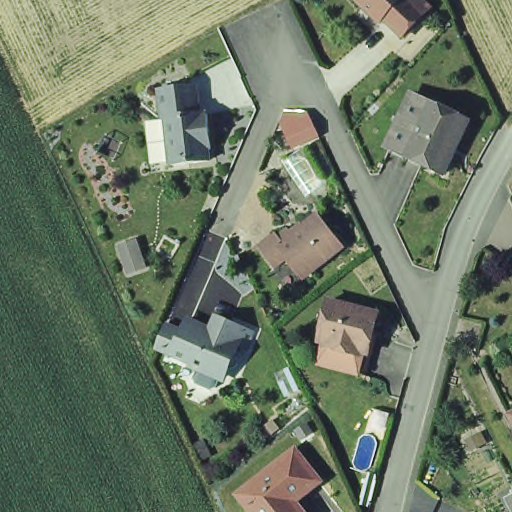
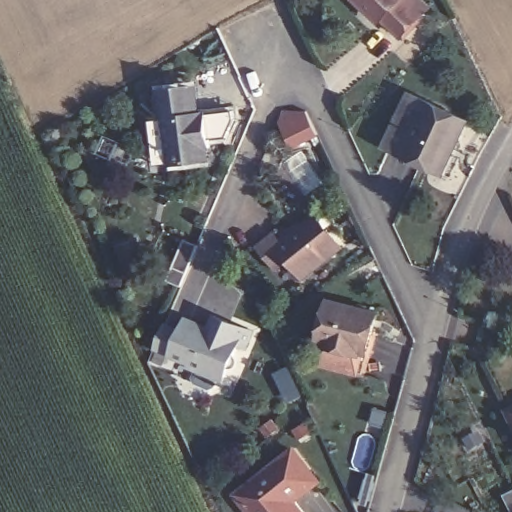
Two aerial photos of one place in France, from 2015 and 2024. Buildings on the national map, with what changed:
unchanged [(422,5),(401,28),(381,11),(378,12),(366,0),(415,0),(422,5)]
unchanged [(151,113),(162,112),(159,82),(189,78),(193,106),(205,105),(208,137),(205,139),(206,152),(169,157),(167,134),(152,135),(151,113)]
unchanged [(446,175),(409,156),(395,149),(421,97),(435,104),(472,123),(446,175)]
unchanged [(292,127),(302,122),(308,134),(297,139),(292,127)]
unchanged [(301,259),(301,253),(296,248),(283,258),(266,235),(279,225),(283,230),(293,222),(298,228),(319,211),(331,226),(335,223),(346,238),(313,266),(310,264),(305,264),(301,259)]
unchanged [(332,302),(377,313),(368,353),(362,372),(318,361),(322,342),(332,302)]
unchanged [(243,349),(236,346),(222,379),(155,352),(165,326),(179,332),(184,323),(207,332),(211,322),(212,317),(223,322),(249,332),(243,349)]
unchanged [(512,396),(512,404),(509,398),(512,396)]
unchanged [(317,477),(294,496),(289,503),(295,512),(252,512),(235,490),(292,446),(317,477)]

